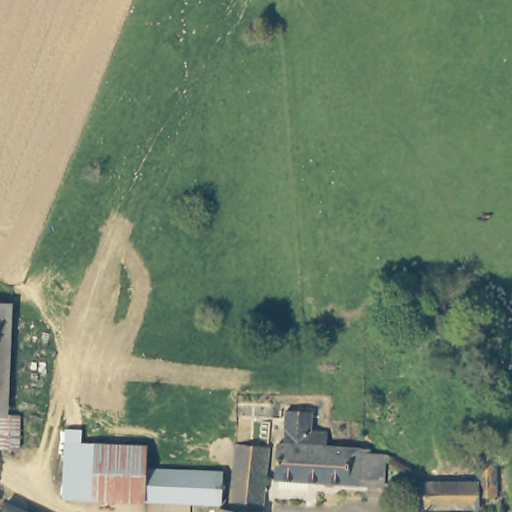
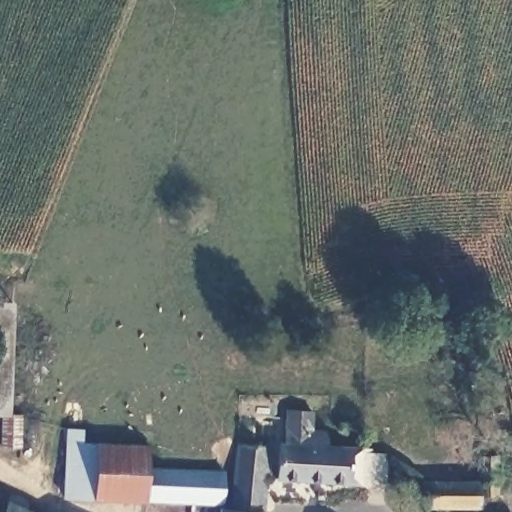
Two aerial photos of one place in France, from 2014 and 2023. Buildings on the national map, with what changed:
unchanged [(21,421),(20,447),(3,446),(4,418),(0,418),(0,301),(19,301),(14,414),(22,414),(21,415),(21,421)]
unchanged [(312,412),(311,432),(328,433),(328,435),(327,447),(330,447),(387,450),(385,487),(372,486),(278,482),(279,452),(279,445),(285,445),(287,411),(312,412)]
unchanged [(74,443),(144,446),(143,463),(143,468),(221,471),(218,507),(61,502),(61,455),(63,430),(69,430),(73,430),(74,443)]
unchanged [(267,451),(265,512),(229,512),(231,472),(233,461),(234,448),(267,451)]
unchanged [(493,452),(502,499),(482,500),(482,508),(421,511),(420,505),(419,482),(478,481),(477,451),(493,452)]
unchanged [(14,496),(43,512),(6,512),(14,496)]

